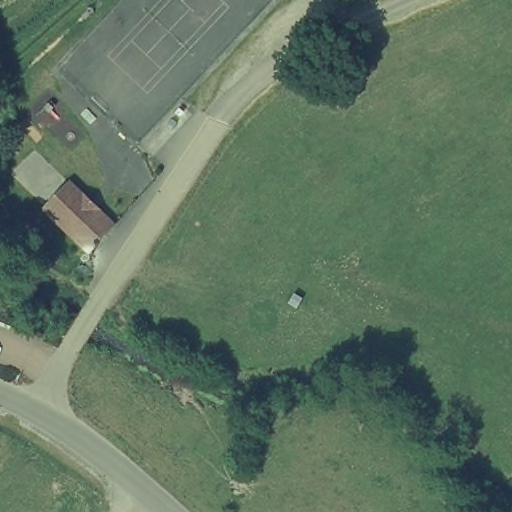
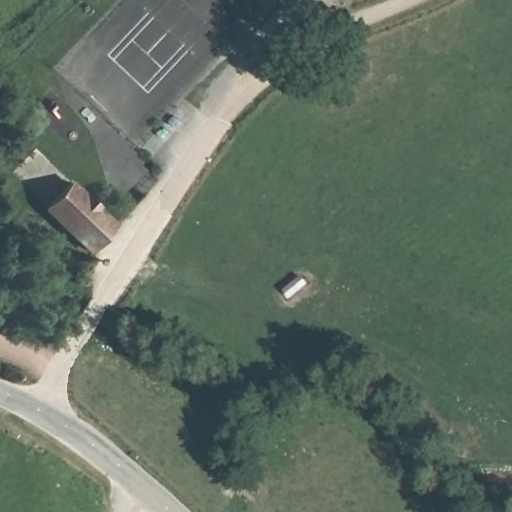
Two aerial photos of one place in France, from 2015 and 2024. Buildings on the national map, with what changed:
unchanged [(72,178),(118,222),(88,254),(42,210),(72,178)]

